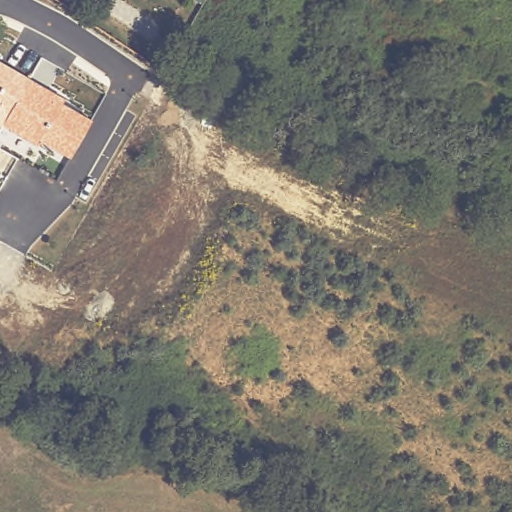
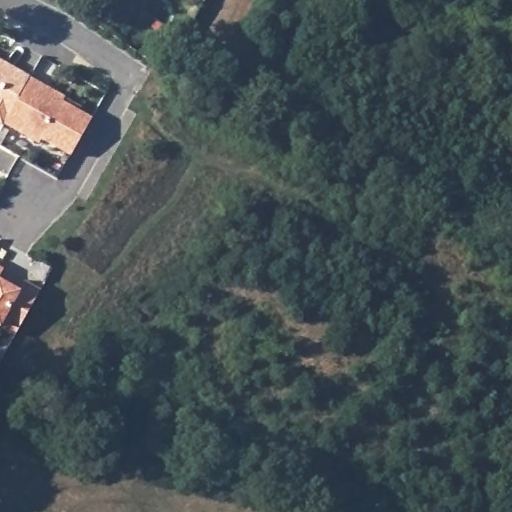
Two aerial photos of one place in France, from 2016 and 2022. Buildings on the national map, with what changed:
unchanged [(30,77),(66,97),(64,102),(94,119),(71,157),(42,142),(39,146),(4,126),(3,127),(0,126),(0,60),(30,77)]
new [(2,271),(0,274),(0,269),(2,271)]
new [(12,289),(18,292),(17,295),(24,282),(40,292),(13,337),(0,329),(0,282),(12,289)]

